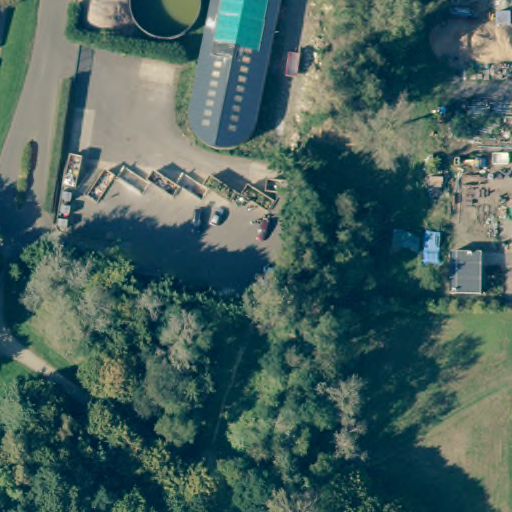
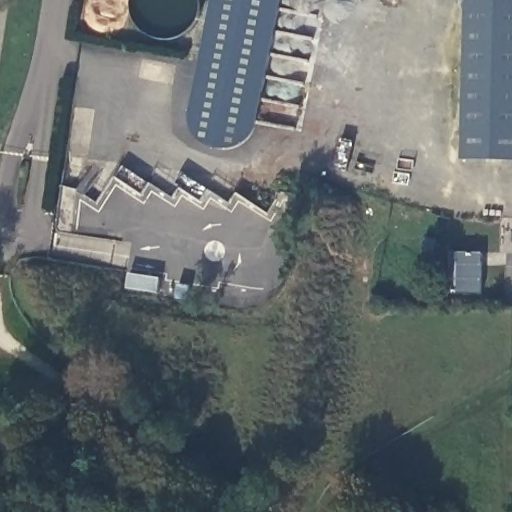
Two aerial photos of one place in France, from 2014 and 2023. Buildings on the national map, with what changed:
unchanged [(251,139),(245,145),(236,149),(225,150),(217,150),(210,147),(202,144),(197,137),(192,130),(190,121),(190,111),(213,0),(282,0),(255,134),(251,139)]
new [(468,0),(512,0),(512,161),(463,160),(468,0)]

